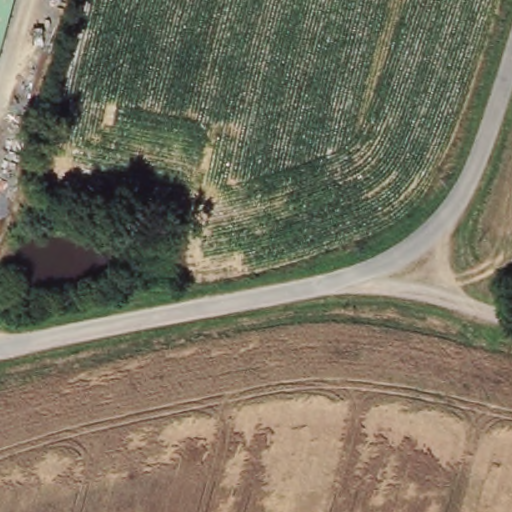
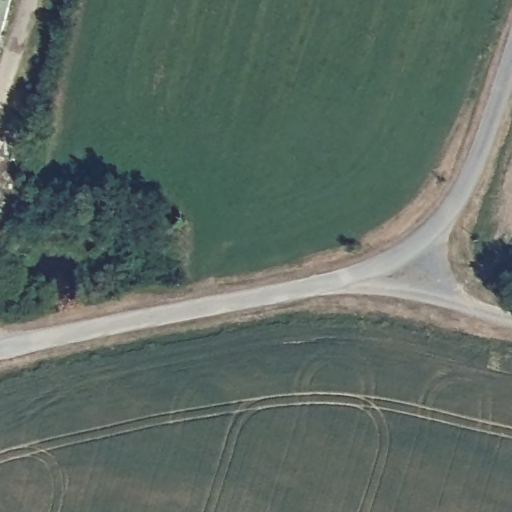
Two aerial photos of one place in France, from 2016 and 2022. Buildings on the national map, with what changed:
unchanged [(0,38),(0,0),(11,0),(0,38)]

